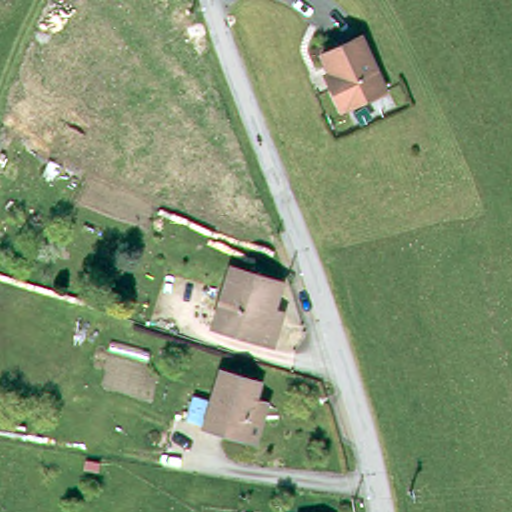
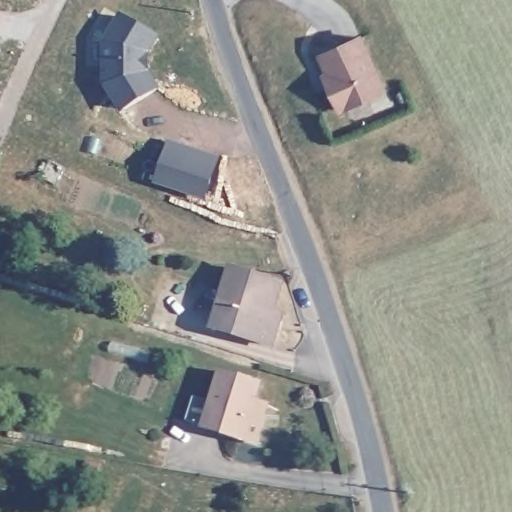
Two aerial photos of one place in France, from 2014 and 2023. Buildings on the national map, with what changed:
new [(121,114),(103,87),(103,41),(119,15),(160,36),(151,52),(150,72),(161,89),(121,114)]
unchanged [(329,71),(320,52),(359,35),(381,87),(338,106),(329,85),(324,74),(329,71)]
new [(219,157),(206,200),(155,183),(168,139),(219,157)]
unchanged [(264,340),(207,320),(226,263),(262,276),(274,280),(267,304),(274,308),(264,340)]
unchanged [(248,434),(232,428),(229,437),(193,424),(210,370),(249,382),(244,396),(259,402),(248,434)]
unchanged [(276,510),(283,512),(275,512),(276,510)]

